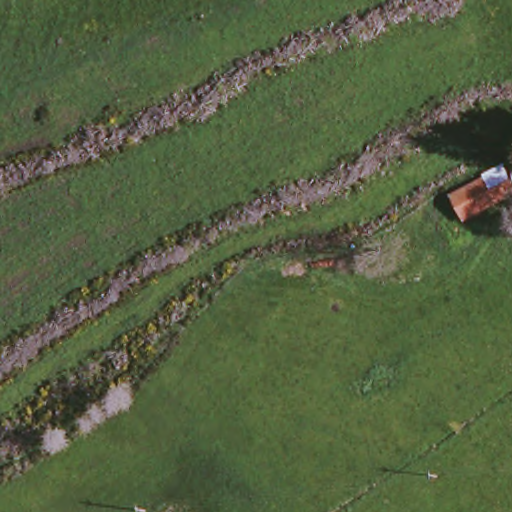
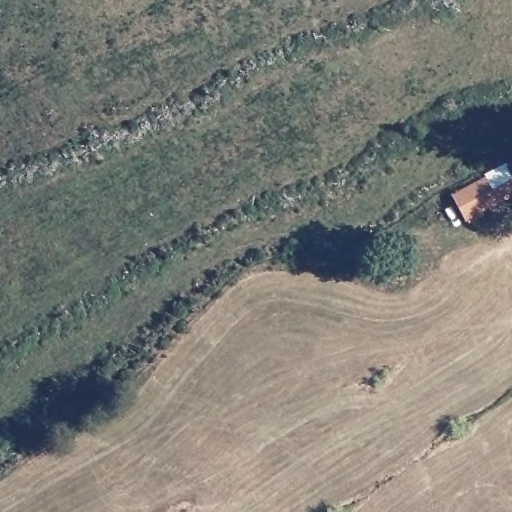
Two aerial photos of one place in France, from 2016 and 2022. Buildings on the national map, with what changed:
unchanged [(479,175),(506,162),(512,173),(512,197),(462,223),(449,196),(481,178),(479,175)]

